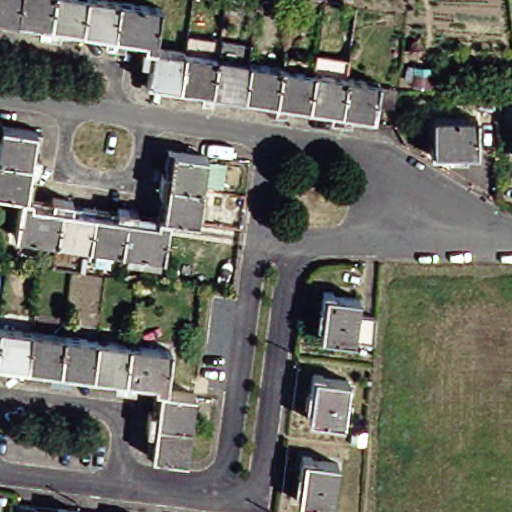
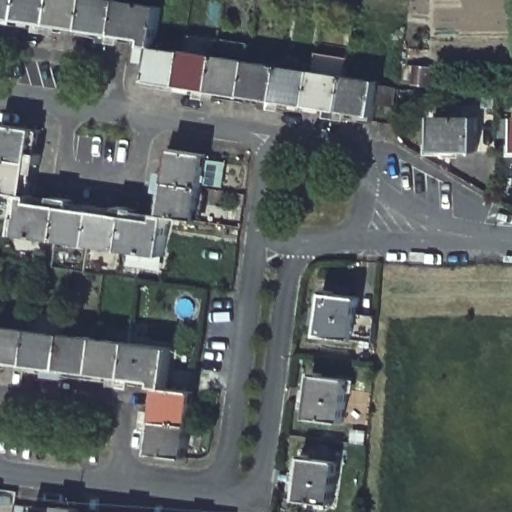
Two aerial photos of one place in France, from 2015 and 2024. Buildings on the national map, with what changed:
unchanged [(0,17),(0,0),(24,0),(21,19),(0,17)]
unchanged [(58,0),(52,34),(42,30),(44,23),(21,19),(24,0),(58,0)]
unchanged [(64,26),(63,33),(52,34),(58,0),(91,0),(86,30),(64,26)]
unchanged [(109,40),(110,34),(109,34),(86,30),(91,0),(124,0),(117,44),(109,40)]
unchanged [(129,43),(117,44),(124,0),(130,0),(165,5),(159,48),(150,46),(150,40),(129,37),(129,43)]
unchanged [(266,5),(266,0),(299,0),(300,5),(266,5)]
unchanged [(192,34),(222,39),(220,57),(214,99),(205,95),(184,92),(184,86),(189,51),(192,34)]
unchanged [(159,48),(189,51),(184,86),(153,81),(159,48)]
unchanged [(286,67),(288,54),(320,59),(318,72),(313,105),(291,102),(290,109),(280,109),(286,67)]
unchanged [(254,62),(249,95),(248,102),(226,101),(214,99),(220,57),(254,62)]
unchanged [(249,95),(254,62),(286,67),(280,109),(269,105),(248,102),(249,95)]
unchanged [(335,109),(313,105),(318,72),(350,77),(343,119),(333,115),(335,109)]
unchanged [(350,77),(384,82),(377,116),(355,113),(353,118),(343,119),(350,77)]
unchanged [(492,115),(491,130),(479,130),(478,150),(443,150),(443,154),(433,154),(433,143),(437,143),(437,114),(492,115)]
unchanged [(40,130),(37,153),(42,153),(44,164),(1,158),(7,125),(40,130)]
unchanged [(508,150),(509,138),(512,138),(512,150),(508,150)]
unchanged [(169,172),(175,173),(177,149),(211,155),(207,189),(165,183),(169,172)]
unchanged [(44,164),(39,174),(34,173),(30,196),(26,195),(0,192),(0,161),(1,158),(44,164)]
unchanged [(171,192),(165,192),(165,183),(207,189),(202,222),(173,217),(167,216),(171,192)]
unchanged [(57,200),(67,199),(61,243),(20,237),(26,195),(30,196),(36,197),(34,203),(56,205),(57,200)]
unchanged [(67,199),(77,203),(76,209),(98,213),(93,247),(61,243),(67,199)]
unchanged [(120,215),(121,209),(132,209),(126,252),(93,247),(98,213),(120,215)]
unchanged [(167,216),(173,217),(167,258),(126,252),(132,209),(143,213),(142,219),(161,222),(162,215),(167,216)]
unchanged [(326,335),(331,293),(366,297),(365,314),(381,317),(379,342),(326,335)]
unchanged [(27,359),(4,356),(3,365),(0,365),(0,321),(31,325),(27,359)]
unchanged [(57,373),(49,369),(50,362),(27,359),(31,325),(62,329),(57,373)]
unchanged [(68,364),(67,374),(57,373),(62,329),(97,334),(92,368),(68,364)]
unchanged [(122,381),(114,377),(114,371),(92,368),(97,334),(127,338),(122,381)]
unchanged [(133,373),(132,382),(122,381),(127,338),(172,344),(166,384),(160,383),(154,382),(155,375),(133,373)]
unchanged [(348,379),(345,423),(310,419),(315,374),(348,379)]
unchanged [(196,388),(191,421),(146,415),(150,405),(157,406),(160,383),(166,384),(196,388)]
unchanged [(191,421),(187,453),(152,449),(155,427),(147,426),(146,415),(191,421)]
unchanged [(338,499),(305,495),(308,454),(343,457),(338,499)]
unchanged [(62,509),(71,509),(70,512),(62,512),(62,509)]
unchanged [(84,512),(70,512),(71,509),(84,512)]

